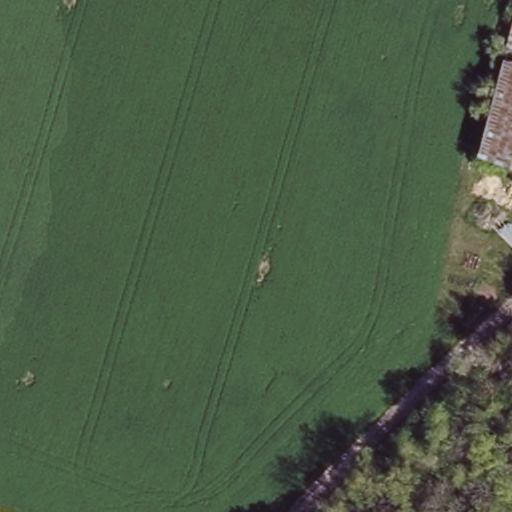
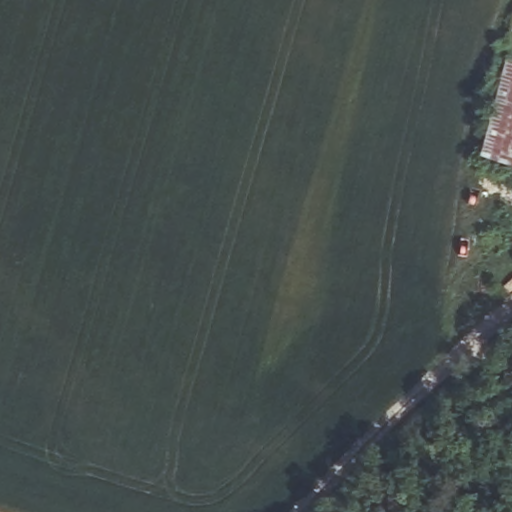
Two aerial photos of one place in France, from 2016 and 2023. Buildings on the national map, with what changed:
unchanged [(512,34),(512,57),(507,55),(512,34)]
unchanged [(512,158),(481,150),(507,55),(512,57),(512,158)]

